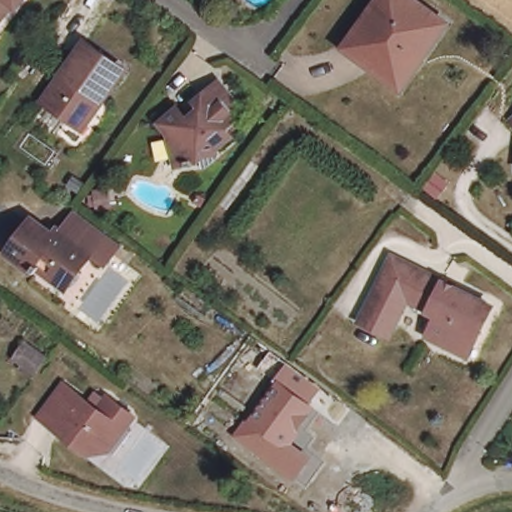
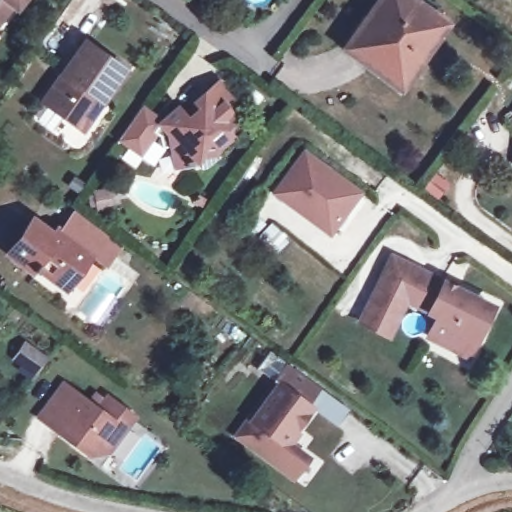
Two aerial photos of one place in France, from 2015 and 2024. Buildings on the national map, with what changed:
unchanged [(17,12),(13,7),(0,23),(0,0),(27,0),(17,12)]
unchanged [(393,77),(347,43),(378,0),(412,0),(443,23),(421,55),(401,83),(393,77)]
unchanged [(68,121),(47,106),(88,46),(117,65),(95,98),(88,92),(68,121)]
unchanged [(223,134),(229,141),(213,153),(215,164),(205,172),(197,174),(192,162),(174,168),(165,161),(166,137),(157,127),(174,112),(180,120),(195,108),(192,104),(206,93),(215,85),(233,107),(223,114),(233,126),(223,134)]
unchanged [(512,116),(512,125),(507,121),(512,116)]
new [(302,148),(362,191),(327,237),(268,192),(302,148)]
new [(447,183),(436,197),(424,188),(435,174),(447,183)]
new [(107,206),(98,208),(96,193),(105,191),(107,206)]
unchanged [(50,236),(56,229),(70,211),(116,245),(102,263),(85,251),(62,284),(35,265),(30,272),(2,252),(26,218),(50,236)]
unchanged [(453,345),(442,339),(427,331),(428,327),(437,311),(407,296),(377,281),(392,253),(480,297),(487,300),(492,303),(492,305),(485,316),(472,341),(467,352),(453,345)]
unchanged [(401,307),(389,330),(360,315),(374,288),(377,281),(407,296),(401,307)]
unchanged [(32,374),(19,364),(10,357),(22,340),(30,347),(45,357),(32,374)]
unchanged [(233,437),(273,381),(257,369),(270,351),(286,363),(322,389),(312,403),(317,408),(294,444),(312,457),(297,480),(233,437)]
unchanged [(108,399),(135,419),(110,454),(99,446),(91,456),(49,425),(38,417),(62,385),(85,402),(98,412),(108,399)]

